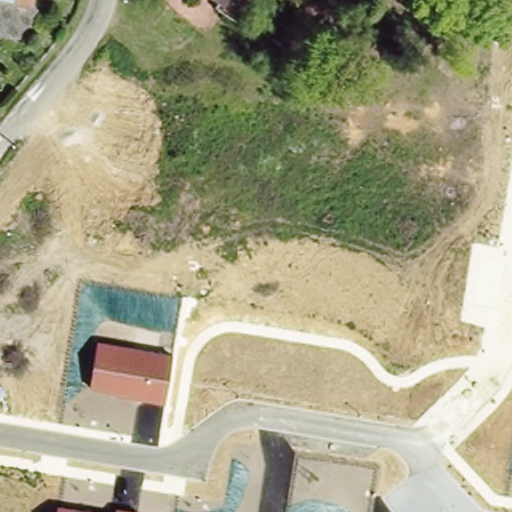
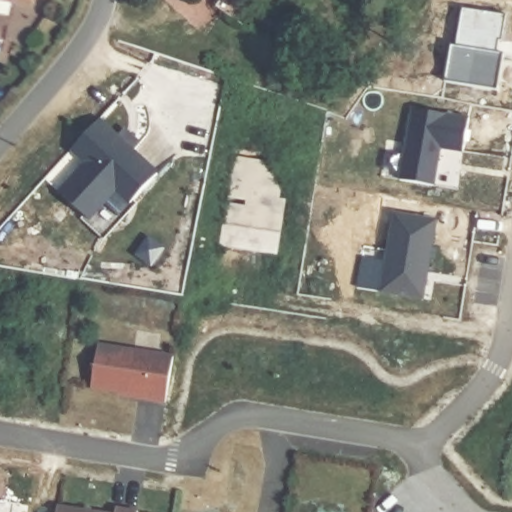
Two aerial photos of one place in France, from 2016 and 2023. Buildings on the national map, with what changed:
unchanged [(23,0),(38,0),(37,3),(23,0)]
new [(445,81),(451,45),(456,46),(462,8),(507,15),(502,41),(500,41),(497,53),(505,54),(498,90),(445,81)]
new [(412,109),(469,118),(463,153),(441,149),(435,187),(400,180),(412,109)]
new [(140,199),(142,203),(107,239),(92,220),(61,192),(87,164),(74,150),(102,119),(162,173),(140,199)]
new [(223,244),(239,153),(272,159),(267,194),(291,198),(284,254),(223,244)]
new [(395,213),(436,219),(423,299),(382,292),(395,213)]
unchanged [(98,340),(174,353),(167,401),(90,386),(98,340)]
new [(0,503),(25,506),(24,512),(0,512),(0,503)]
unchanged [(57,504),(103,512),(56,512),(57,504)]
unchanged [(115,505),(140,509),(139,512),(114,512),(115,505)]

